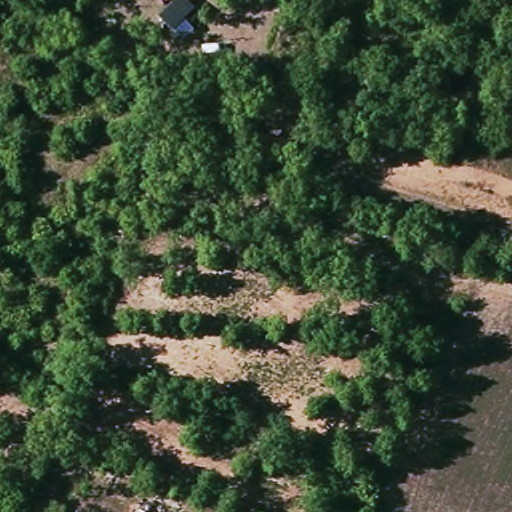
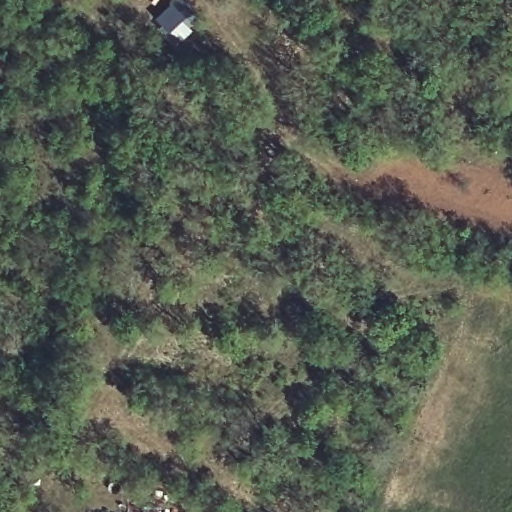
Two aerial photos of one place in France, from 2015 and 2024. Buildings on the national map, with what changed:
unchanged [(202,16),(191,27),(185,21),(172,32),(159,16),(178,0),(187,0),(202,16)]

